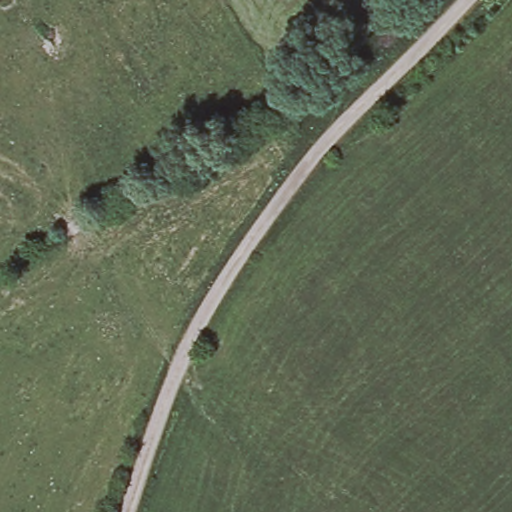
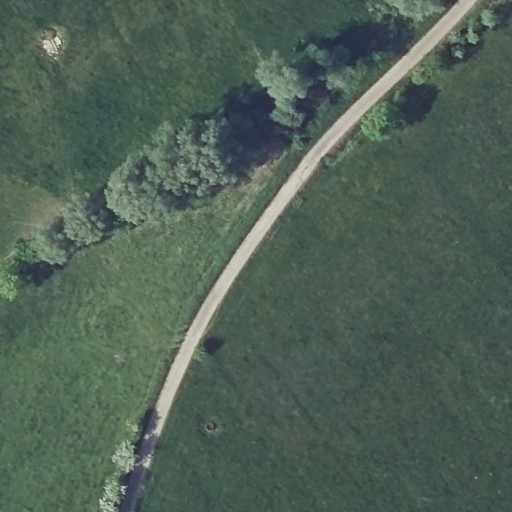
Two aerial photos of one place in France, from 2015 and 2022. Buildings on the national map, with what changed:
[]

